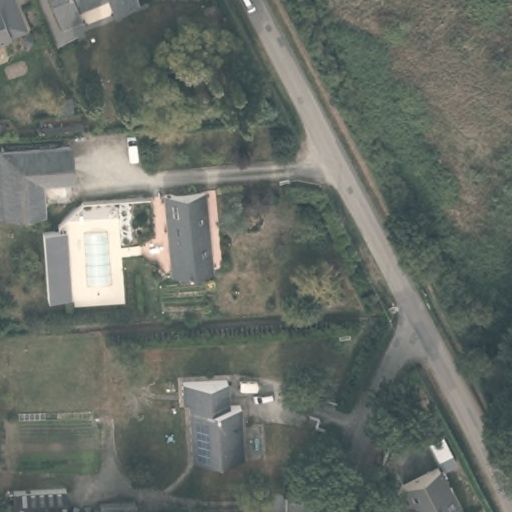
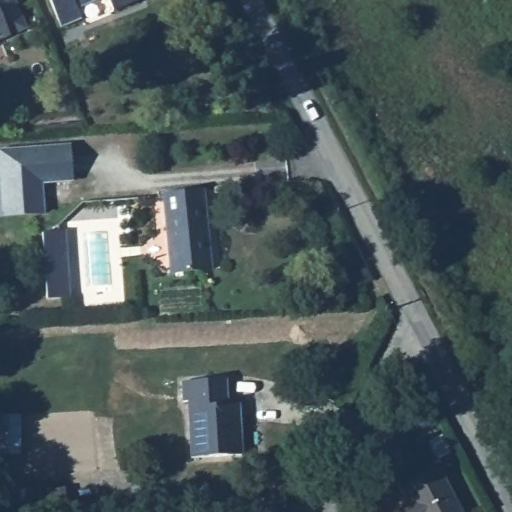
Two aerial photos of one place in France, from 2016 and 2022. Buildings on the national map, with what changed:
unchanged [(0,40),(0,0),(17,0),(28,30),(0,40)]
unchanged [(75,11),(80,25),(57,32),(46,0),(105,0),(75,11)]
unchanged [(136,7),(111,15),(105,0),(133,0),(136,7)]
unchanged [(53,186),(29,188),(29,216),(0,217),(0,152),(51,148),(53,186)]
unchanged [(209,273),(165,278),(159,200),(201,196),(209,273)]
unchanged [(71,297),(46,299),(43,232),(67,231),(71,297)]
unchanged [(512,394),(512,403),(490,414),(469,373),(494,359),(512,394)]
unchanged [(241,461),(194,464),(188,409),(180,409),(178,388),(223,385),(225,410),(238,409),(241,461)]
unchanged [(400,512),(401,510),(410,505),(401,488),(437,470),(458,512),(400,512)]
unchanged [(68,498),(69,512),(14,512),(14,503),(68,498)]
unchanged [(134,512),(100,512),(134,509),(134,512)]

